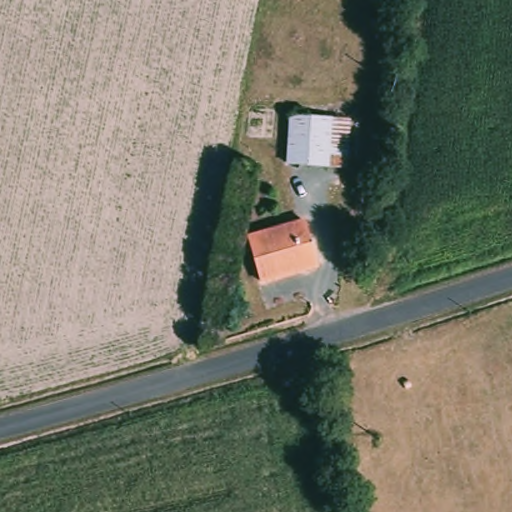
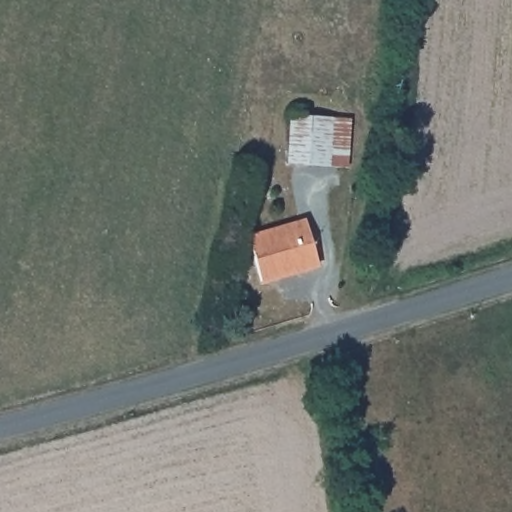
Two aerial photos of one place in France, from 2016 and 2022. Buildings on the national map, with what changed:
unchanged [(284,120),(344,120),(344,166),(285,167),(284,120)]
unchanged [(248,235),(305,228),(313,271),(255,282),(248,235)]

